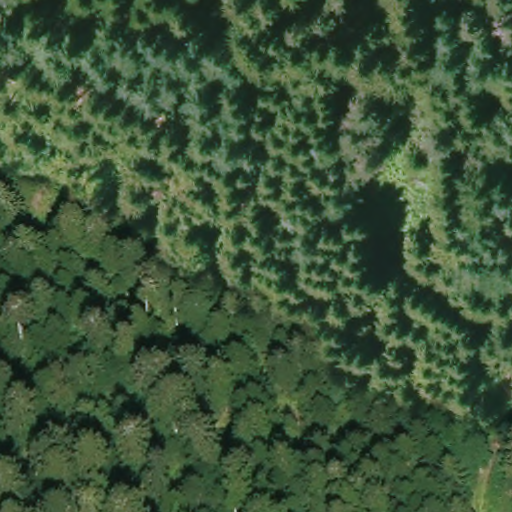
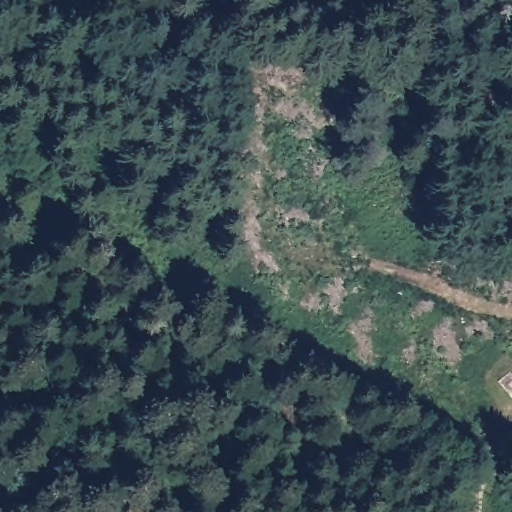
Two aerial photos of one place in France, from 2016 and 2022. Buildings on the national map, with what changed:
unchanged [(491,381),(508,368),(512,375),(512,397),(506,401),(491,381)]

